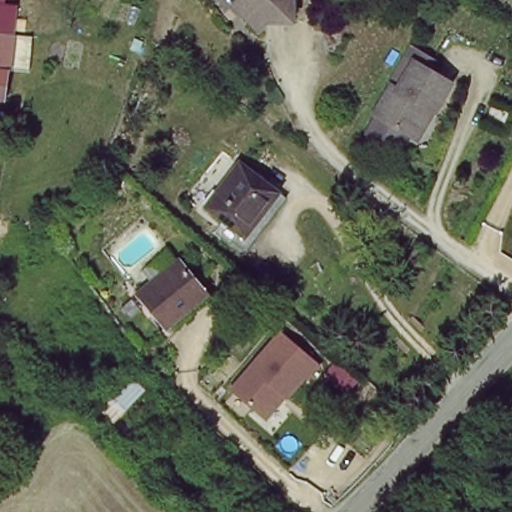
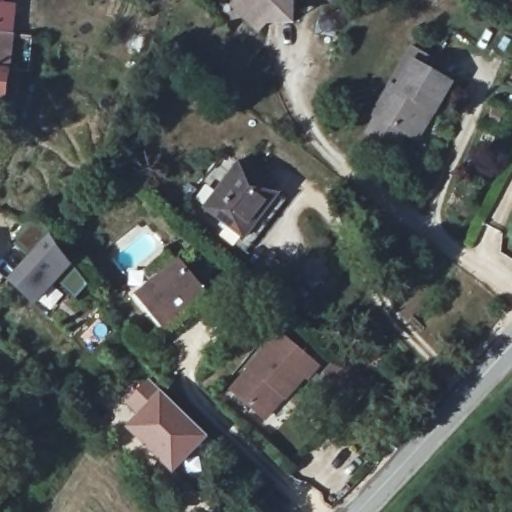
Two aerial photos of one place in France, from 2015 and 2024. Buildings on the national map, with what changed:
unchanged [(302,1),(305,23),(282,24),(272,35),(257,21),(255,0),(254,0),(303,0),(302,1)]
unchanged [(3,96),(0,96),(0,29),(8,30),(3,96)]
unchanged [(409,129),(402,126),(393,143),(365,127),(373,110),(371,109),(387,78),(393,82),(410,53),(449,73),(433,103),(417,134),(409,129)]
unchanged [(280,187),(249,235),(208,205),(238,159),(280,187)]
new [(28,258),(12,243),(37,217),(73,266),(90,286),(76,301),(57,283),(35,307),(7,280),(28,258)]
unchanged [(177,264),(209,296),(168,331),(138,299),(177,264)]
unchanged [(280,330),(320,367),(267,423),(230,388),(280,330)]
demolished [(100,406),(127,377),(145,397),(117,424),(100,406)]
new [(160,394),(208,440),(174,475),(126,428),(137,415),(125,404),(148,381),(160,394)]

